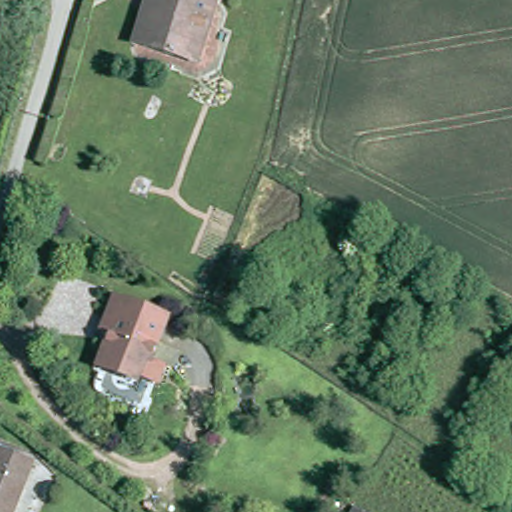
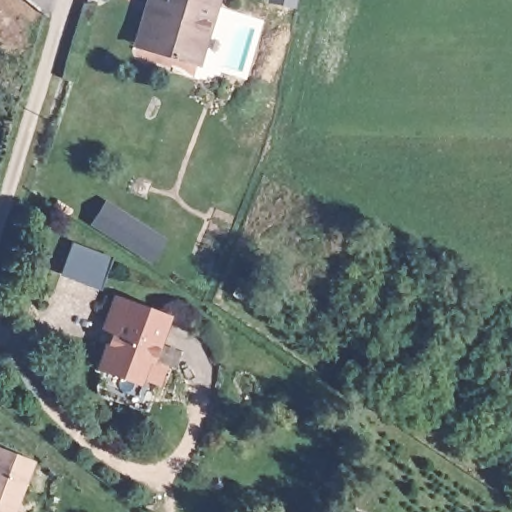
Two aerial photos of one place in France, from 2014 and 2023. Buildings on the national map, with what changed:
unchanged [(144,48),(157,6),(148,3),(148,0),(217,0),(197,64),(144,48)]
new [(105,199),(167,240),(151,263),(89,223),(105,199)]
new [(73,243),(113,258),(100,290),(60,274),(73,243)]
unchanged [(168,318),(151,361),(146,359),(138,378),(123,372),(121,376),(99,368),(112,335),(103,331),(108,319),(115,298),(168,318)]
unchanged [(18,483),(24,486),(13,512),(0,512),(0,450),(28,461),(18,483)]

